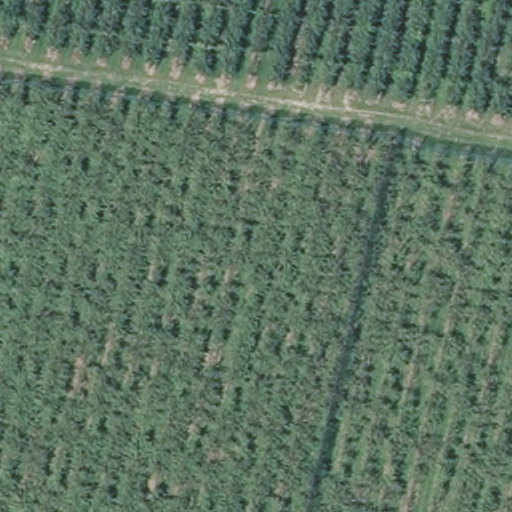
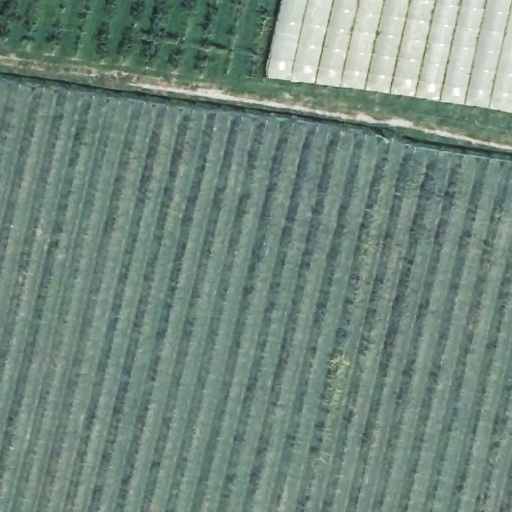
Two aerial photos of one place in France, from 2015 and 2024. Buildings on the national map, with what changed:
new [(267,76),(284,0),(512,0),(512,114),(267,76)]

